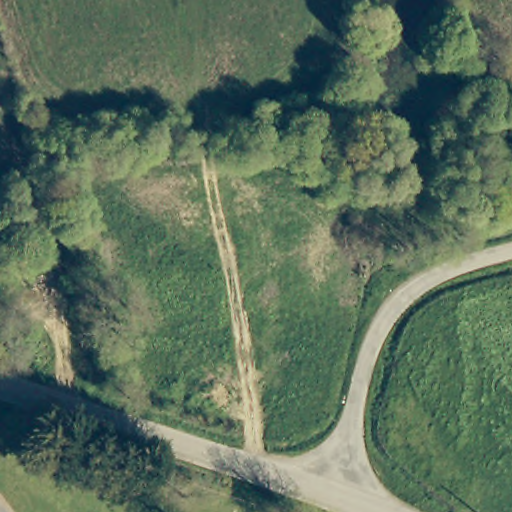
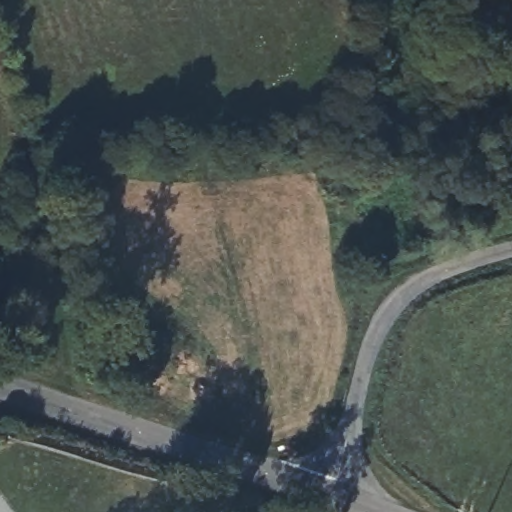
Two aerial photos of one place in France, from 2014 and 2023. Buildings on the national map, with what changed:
[]

